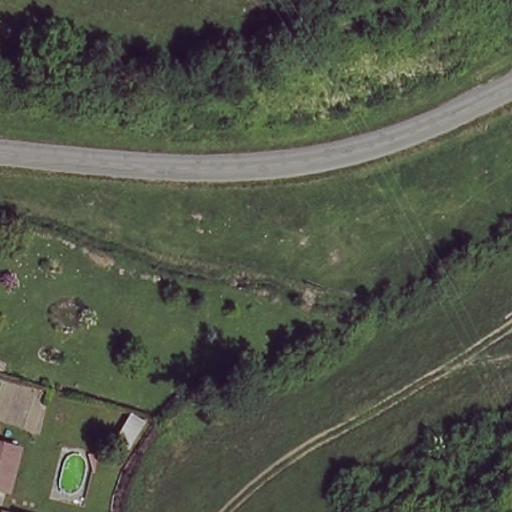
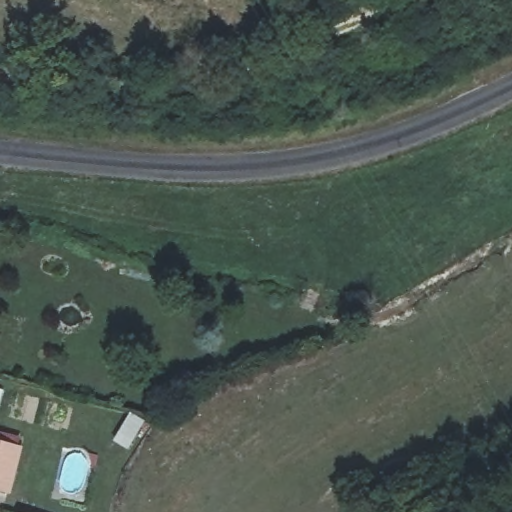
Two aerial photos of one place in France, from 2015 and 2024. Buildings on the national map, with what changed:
unchanged [(24,443),(10,485),(0,482),(0,437),(24,443)]

